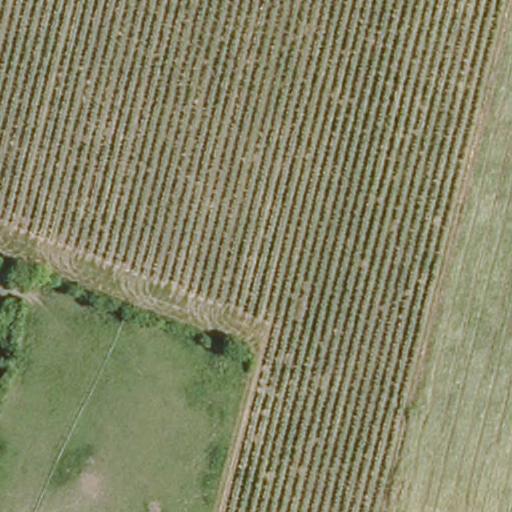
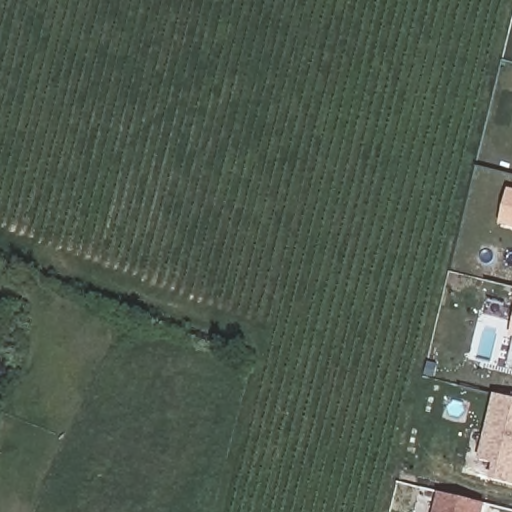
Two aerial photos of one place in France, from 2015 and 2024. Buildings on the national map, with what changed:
new [(512,228),(499,225),(508,189),(512,190),(512,228)]
new [(512,316),(512,339),(507,338),(512,316)]
new [(491,395),(512,400),(512,485),(473,480),(491,395)]
new [(434,494),(484,503),(482,512),(430,512),(434,494)]

